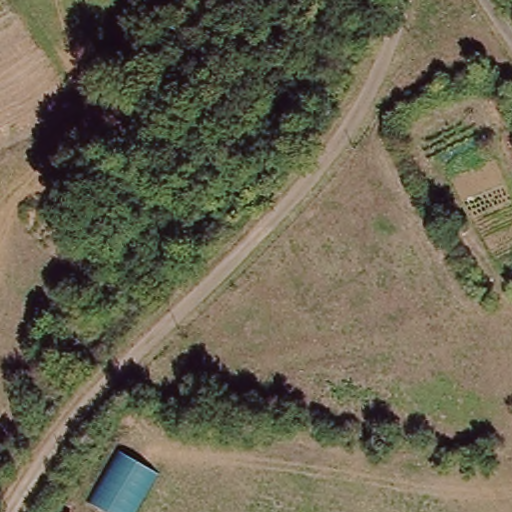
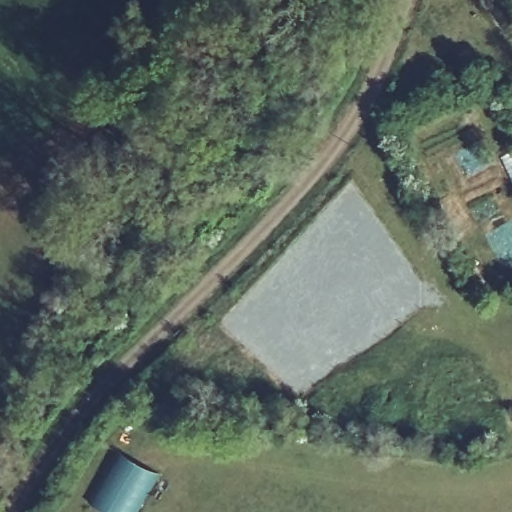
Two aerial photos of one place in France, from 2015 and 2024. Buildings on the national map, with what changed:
unchanged [(137,512),(110,512),(93,503),(124,450),(161,470),(137,512)]

